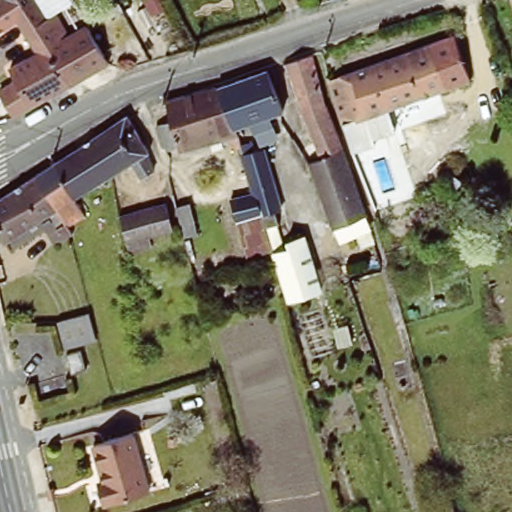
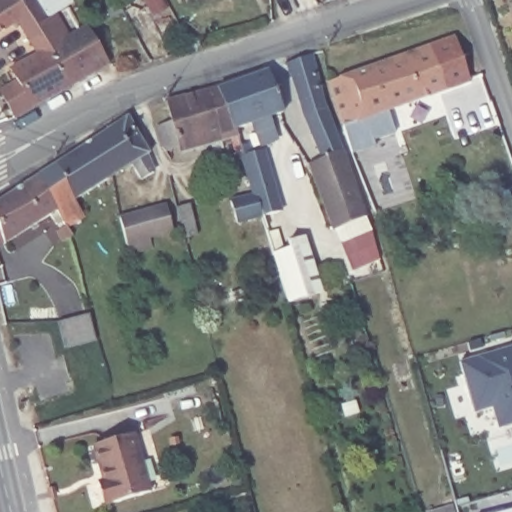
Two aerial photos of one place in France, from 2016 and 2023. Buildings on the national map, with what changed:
unchanged [(6,0),(0,4),(0,0),(6,0)]
unchanged [(17,85),(10,71),(34,58),(20,36),(25,34),(17,23),(0,34),(0,4),(6,0),(30,0),(44,23),(55,16),(69,38),(47,50),(69,89),(37,107),(22,116),(19,117),(5,92),(17,85)]
unchanged [(47,50),(69,38),(87,28),(110,66),(69,89),(47,50)]
unchanged [(327,80),(450,37),(467,83),(406,106),(378,116),(383,135),(360,144),(363,153),(352,156),(327,80)]
unchanged [(312,55),(317,87),(362,214),(367,213),(369,218),(370,223),(364,225),(333,235),(306,166),(318,160),(312,141),(285,65),(312,55)]
unchanged [(267,66),(268,66),(280,108),(231,125),(217,82),(267,66)]
unchanged [(217,82),(231,125),(234,132),(179,149),(177,142),(162,146),(155,120),(170,117),(165,97),(217,82)]
unchanged [(34,180),(124,125),(147,156),(152,175),(134,182),(129,169),(74,205),(85,220),(64,232),(62,229),(34,181),(34,180)]
unchanged [(254,275),(242,239),(232,206),(240,204),(232,180),(245,176),(240,160),(259,154),(280,215),(275,217),(279,230),(277,230),(284,252),(305,245),(322,296),(288,307),(287,307),(276,270),(254,275)]
unchanged [(34,181),(62,229),(56,233),(49,221),(5,250),(0,238),(0,202),(34,181)]
unchanged [(130,255),(120,219),(165,205),(172,230),(149,237),(151,249),(130,255)]
unchanged [(175,210),(190,206),(197,235),(182,239),(175,210)]
unchanged [(64,338),(59,315),(89,309),(95,332),(64,338)]
unchanged [(80,342),(84,361),(70,363),(65,345),(80,342)]
new [(492,406),(474,411),(460,361),(512,346),(512,424),(497,428),(492,406)]
demolished [(63,364),(67,380),(35,387),(32,372),(63,364)]
unchanged [(140,495),(107,505),(101,481),(105,480),(95,445),(125,438),(136,435),(142,456),(150,492),(140,495)]
new [(512,510),(512,512),(505,512),(512,510)]

